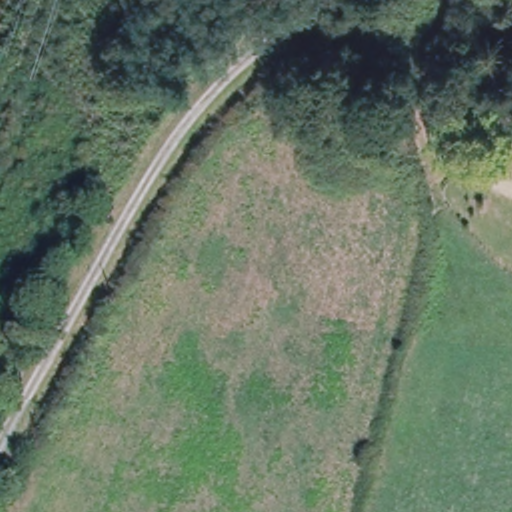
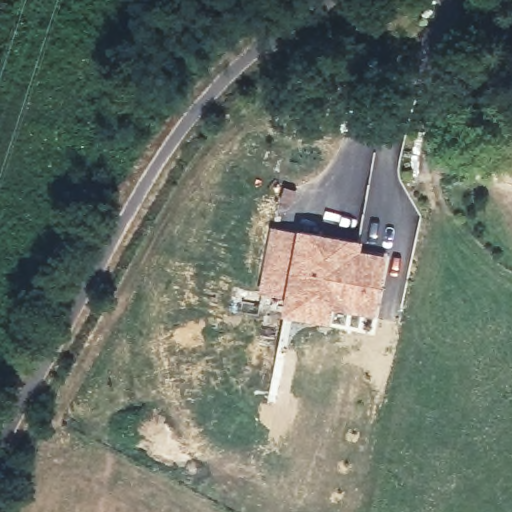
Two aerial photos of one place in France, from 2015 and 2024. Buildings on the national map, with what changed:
new [(274,233),(299,237),(287,302),(262,298),(274,233)]
new [(284,317),(285,311),(287,302),(299,237),(357,249),(356,257),(364,259),(383,262),(376,298),(372,317),(352,313),(329,309),(325,326),(284,317)]

